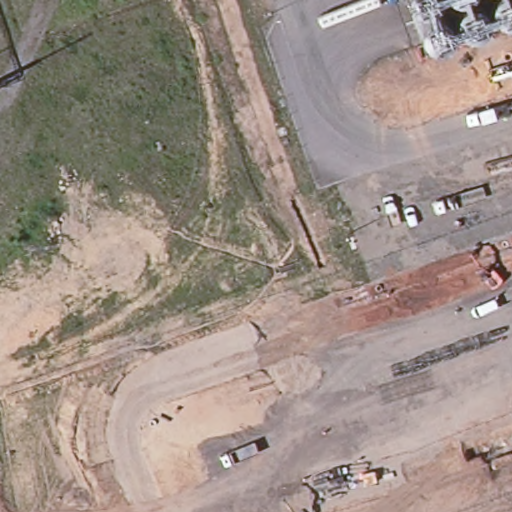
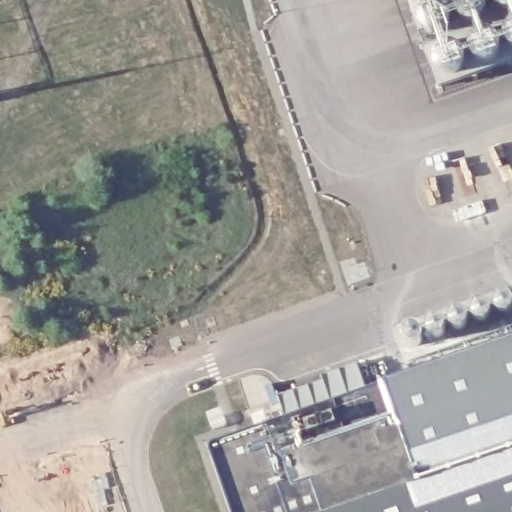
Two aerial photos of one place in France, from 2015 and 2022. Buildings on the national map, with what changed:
new [(285,416),(277,395),(323,381),(320,376),(359,362),(368,387),(387,380),(440,361),(433,341),(425,321),(509,291),(512,300),(512,512),(232,512),(207,441),(285,416)]

